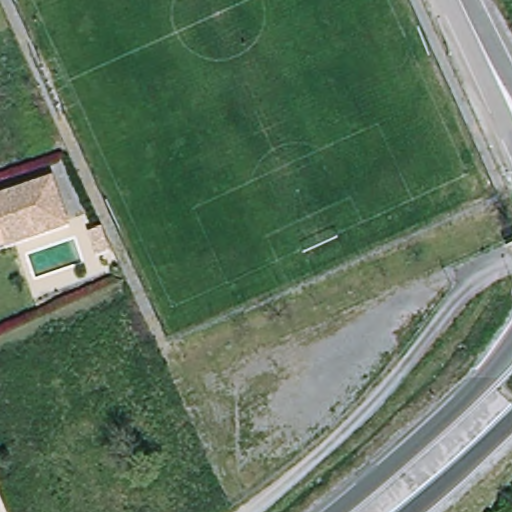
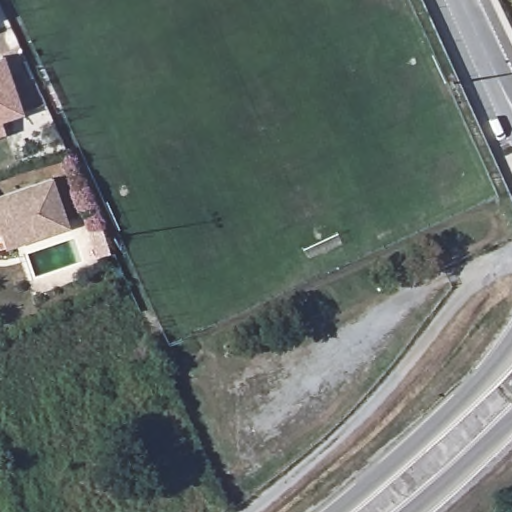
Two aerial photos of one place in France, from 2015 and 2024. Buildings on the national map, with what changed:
new [(5,54),(25,114),(2,122),(5,134),(0,136),(0,56),(5,54)]
unchanged [(9,248),(7,242),(3,232),(0,233),(0,197),(55,179),(70,220),(72,227),(9,248)]

